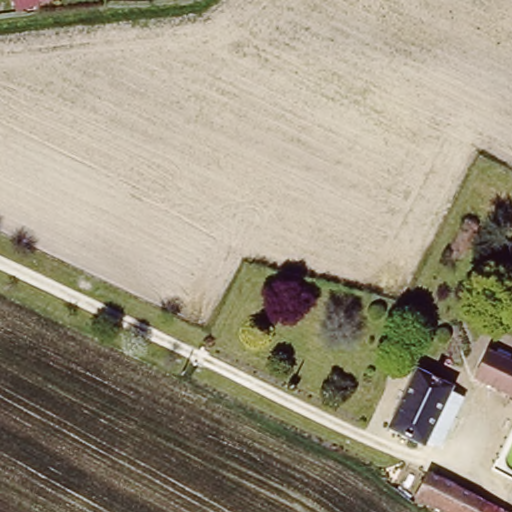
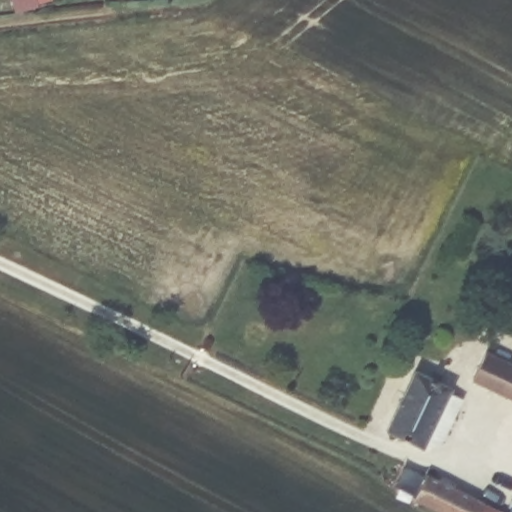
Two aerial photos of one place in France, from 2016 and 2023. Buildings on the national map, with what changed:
unchanged [(473,381),(486,354),(500,360),(506,348),(512,352),(512,401),(473,381)]
unchanged [(454,388),(451,395),(457,398),(460,408),(443,446),(433,447),(427,445),(425,449),(385,431),(414,370),(454,388)]
unchanged [(431,508),(442,484),(492,509),(498,512),(438,512),(431,508)]

